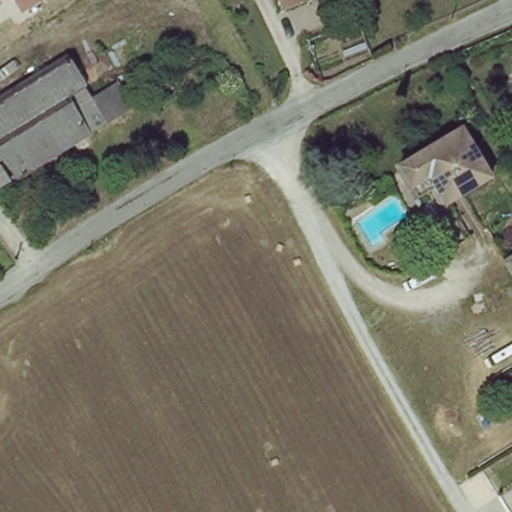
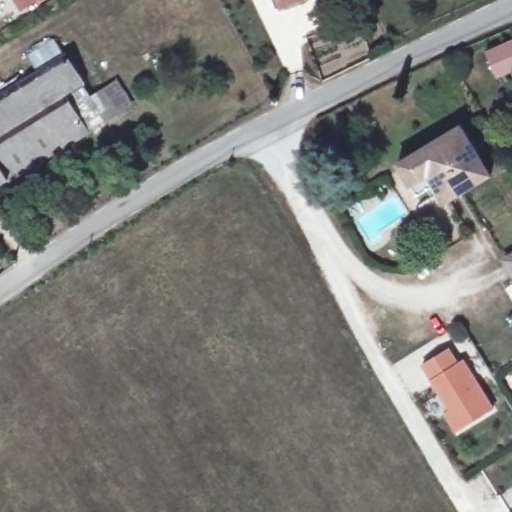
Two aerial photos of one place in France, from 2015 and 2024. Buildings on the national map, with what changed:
unchanged [(21,12),(14,0),(42,0),(21,12)]
unchanged [(282,8),(279,0),(304,0),(282,8)]
new [(512,70),(502,75),(504,77),(497,81),(485,52),(512,41),(512,70)]
unchanged [(0,167),(0,166),(0,99),(62,59),(92,106),(103,99),(115,117),(10,184),(0,191),(0,167)]
unchanged [(486,182),(441,207),(432,192),(415,201),(397,167),(458,132),(486,182)]
unchanged [(512,264),(512,275),(507,267),(512,264)]
new [(420,367),(450,347),(459,362),(464,359),(495,409),(455,434),(442,414),(435,419),(426,406),(440,398),(420,367)]

